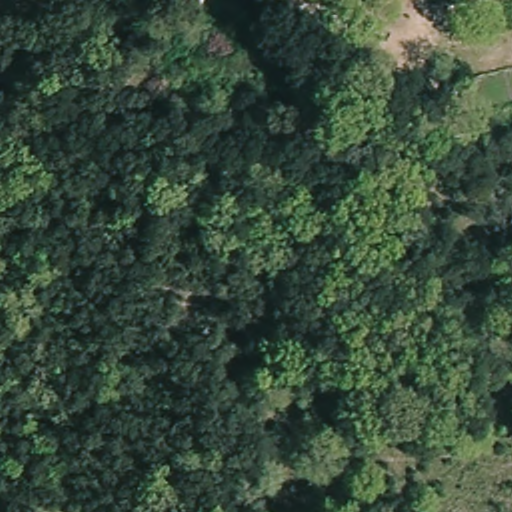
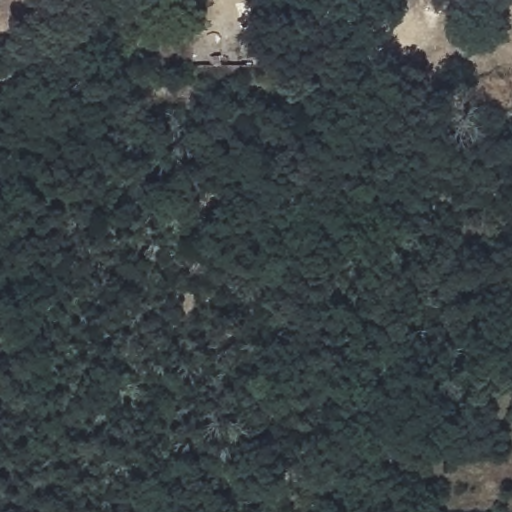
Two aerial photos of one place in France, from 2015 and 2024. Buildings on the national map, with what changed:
unchanged [(449,0),(484,0),(484,2),(449,5),(449,0)]

